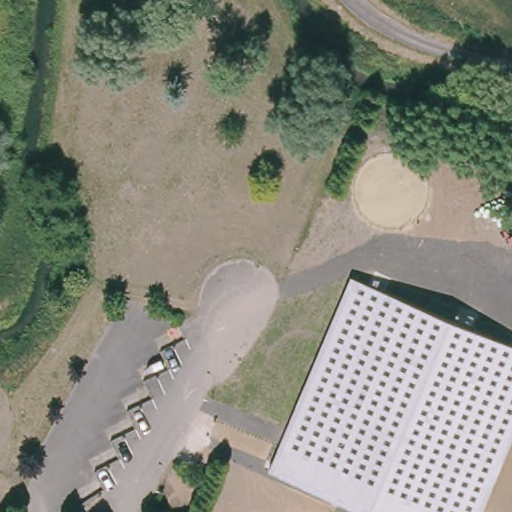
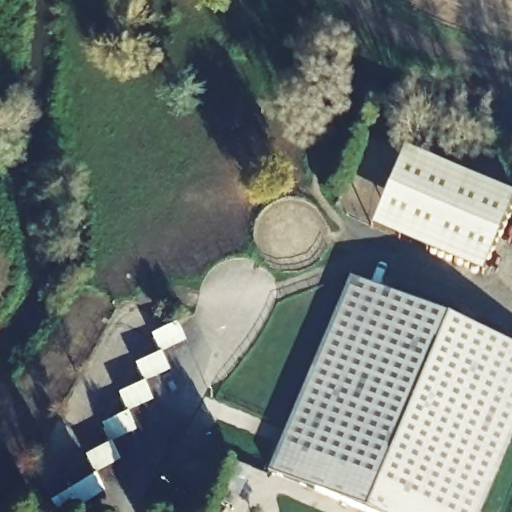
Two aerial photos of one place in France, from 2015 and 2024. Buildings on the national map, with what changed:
new [(512,196),(512,205),(483,275),(371,227),(404,150),(512,196)]
unchanged [(484,512),(350,512),(274,479),(349,285),(512,352),(512,442),(484,512)]

